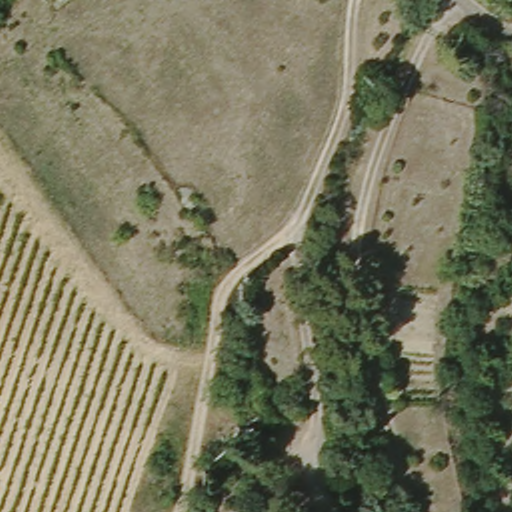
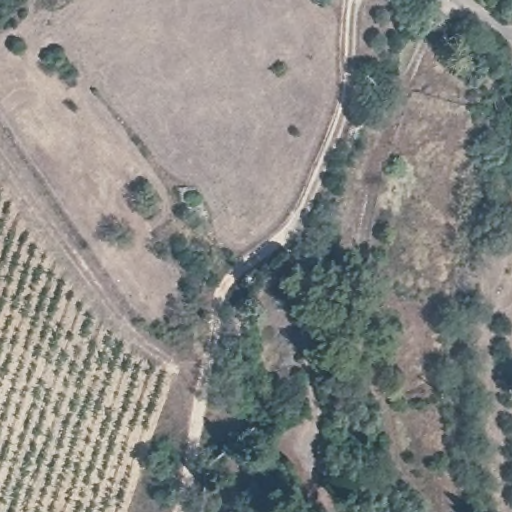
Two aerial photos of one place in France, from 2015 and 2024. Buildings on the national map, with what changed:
unchanged [(185,476),(167,490),(153,472),(171,458),(185,476)]

